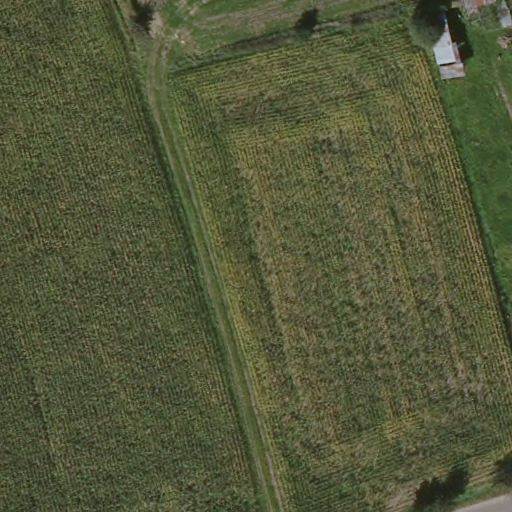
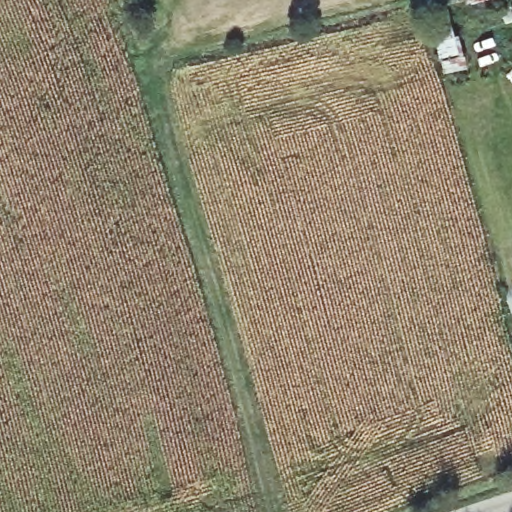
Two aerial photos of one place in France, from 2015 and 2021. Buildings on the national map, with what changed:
unchanged [(473,0),(501,0),(475,8),(473,0)]
unchanged [(432,8),(454,1),(461,27),(439,35),(432,8)]

